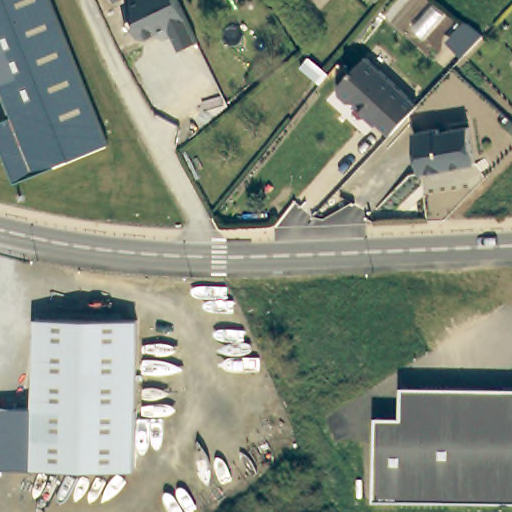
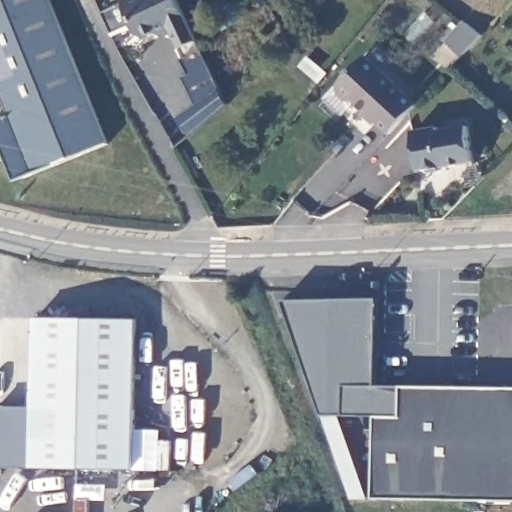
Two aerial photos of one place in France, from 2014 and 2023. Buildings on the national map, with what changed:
unchanged [(105,137),(20,172),(9,167),(0,146),(0,113),(7,110),(0,93),(0,0),(48,0),(105,137)]
unchanged [(194,38),(178,46),(167,23),(142,35),(136,33),(121,1),(123,0),(176,0),(194,38)]
unchanged [(466,52),(452,38),(467,21),(483,33),(466,52)]
unchanged [(390,132),(356,99),(348,99),(339,90),(338,83),(366,54),(418,103),(390,132)]
unchanged [(320,83),(300,66),(308,56),(327,73),(320,83)]
unchanged [(225,108),(220,112),(201,127),(192,117),(219,97),(225,108)]
unchanged [(473,161),(442,166),(440,170),(428,172),(425,169),(419,170),(412,131),(437,126),(437,130),(467,125),(473,161)]
new [(401,417),(375,417),(325,415),(287,300),(377,298),(377,386),(401,387),(401,417)]
unchanged [(134,470),(0,470),(0,408),(34,408),(34,318),(134,318),(134,470)]
unchanged [(375,417),(401,417),(401,387),(512,390),(512,503),(373,500),(375,417)]

